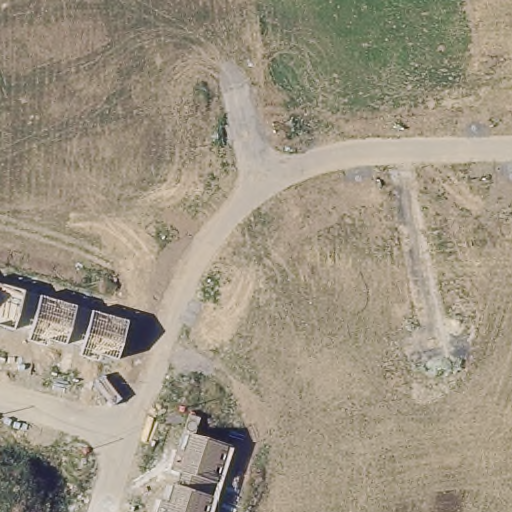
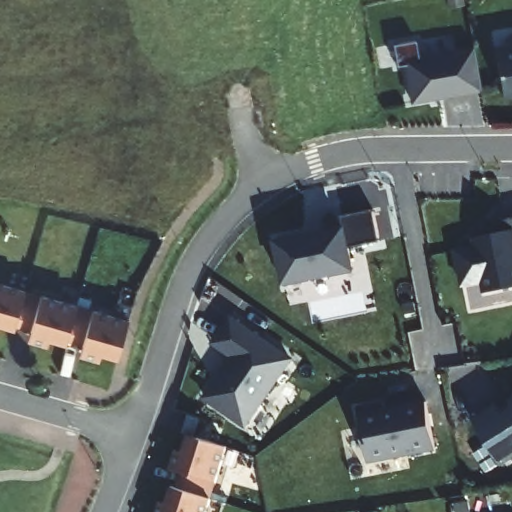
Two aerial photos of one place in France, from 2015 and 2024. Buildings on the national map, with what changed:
new [(405,67),(398,68),(392,44),(412,39),(417,57),(472,48),(484,91),(414,104),(405,67)]
new [(512,96),(500,98),(493,52),(512,49),(512,96)]
new [(304,233),(305,237),(317,235),(316,230),(342,226),(341,217),(374,211),(380,244),(347,251),(350,274),(282,287),(275,239),(304,233)]
new [(481,282),(460,286),(453,249),(473,246),(472,237),(496,231),(495,223),(512,219),(512,287),(483,292),(481,282)]
unchanged [(25,291),(40,295),(76,306),(93,311),(127,320),(117,360),(100,355),(98,362),(80,357),(83,343),(66,337),(65,345),(47,340),(45,347),(28,342),(31,330),(14,325),(13,329),(0,326),(0,285),(25,291)]
new [(225,317),(291,363),(243,425),(204,397),(232,357),(208,342),(225,317)]
new [(500,408),(510,402),(509,399),(512,398),(512,455),(500,462),(472,418),(496,402),(500,408)]
new [(385,402),(386,409),(426,400),(436,450),(369,464),(357,408),(385,402)]
unchanged [(190,434),(228,445),(217,483),(212,497),(208,512),(157,512),(160,501),(167,503),(172,484),(177,485),(181,473),(171,470),(176,449),(184,452),(190,434)]

